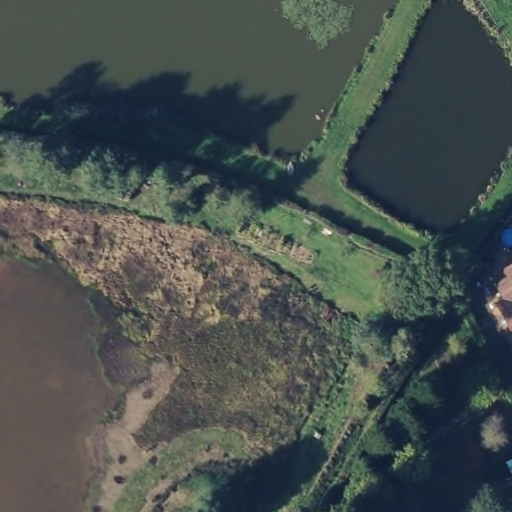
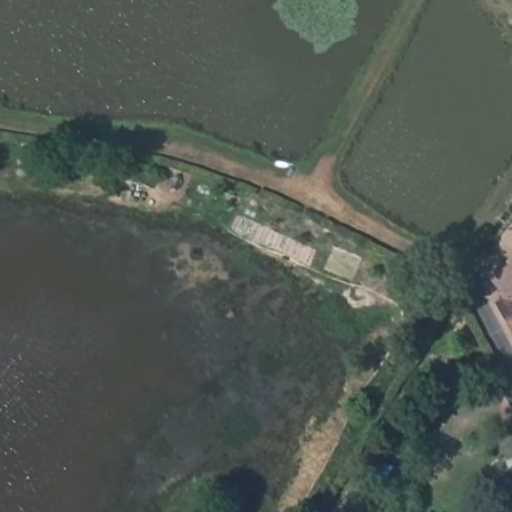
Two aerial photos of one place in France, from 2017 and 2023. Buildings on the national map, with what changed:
unchanged [(499,308),(507,302),(500,289),(508,272),(509,268),(512,267),(512,332),(499,308)]

